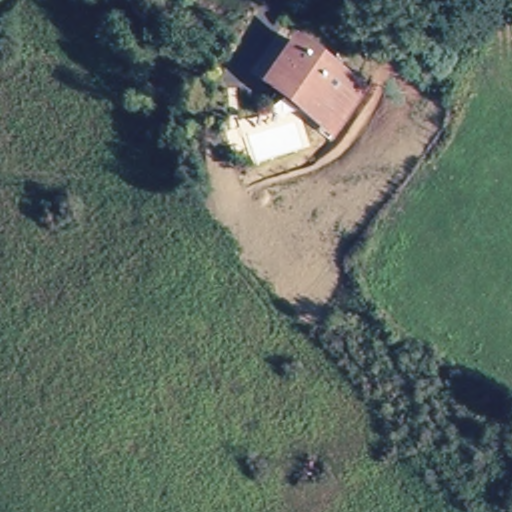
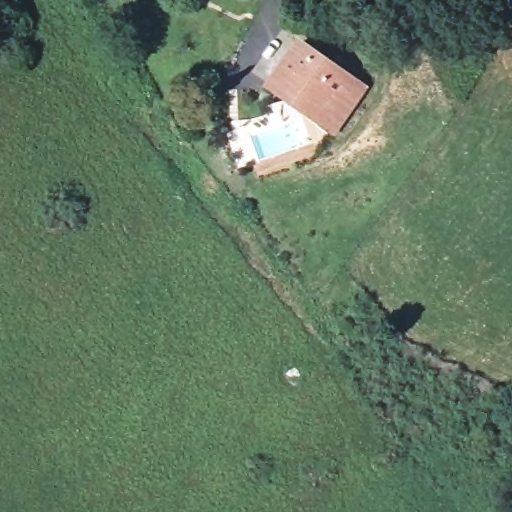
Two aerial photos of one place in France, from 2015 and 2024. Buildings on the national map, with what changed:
unchanged [(344,128),(326,118),(271,89),(291,49),(347,79),(365,88),(344,128)]

